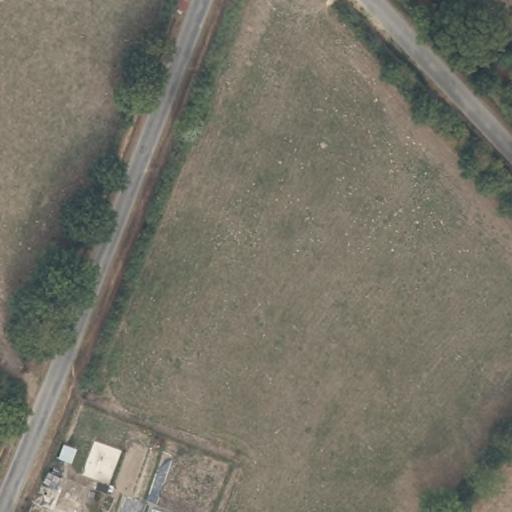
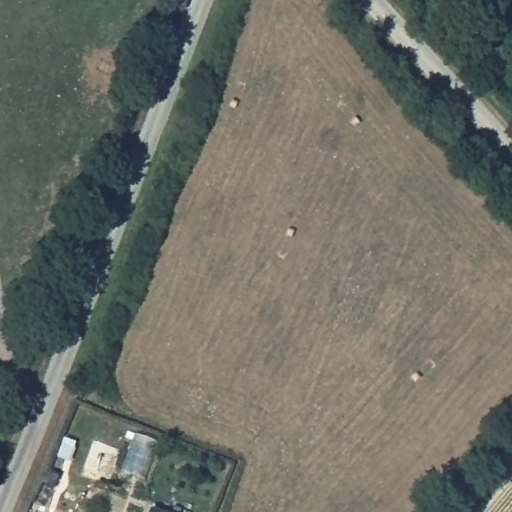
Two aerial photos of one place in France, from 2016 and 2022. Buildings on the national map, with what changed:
unchanged [(169,512),(151,512),(152,506),(169,512)]

